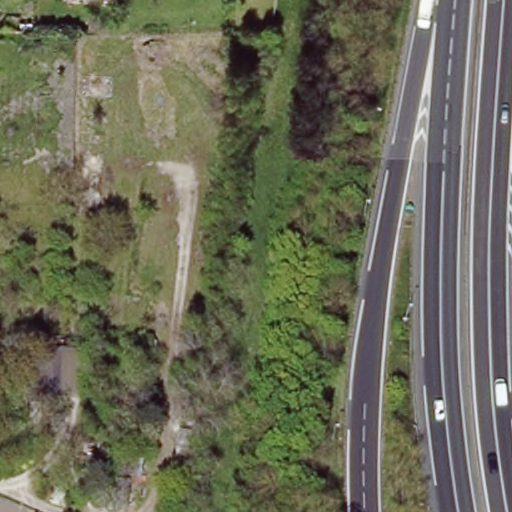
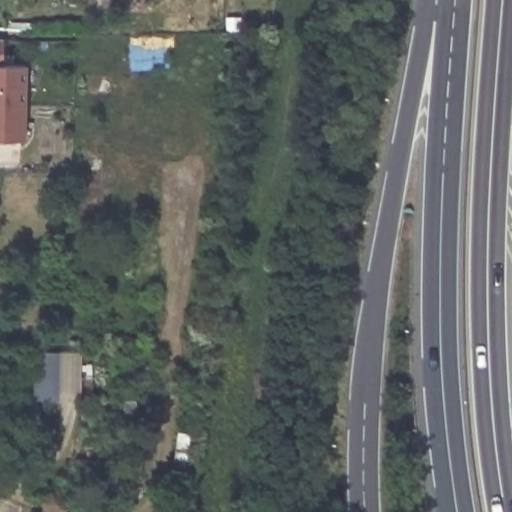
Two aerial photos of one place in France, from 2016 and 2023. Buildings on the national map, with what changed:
new [(21,67),(19,140),(0,139),(0,67),(21,67)]

